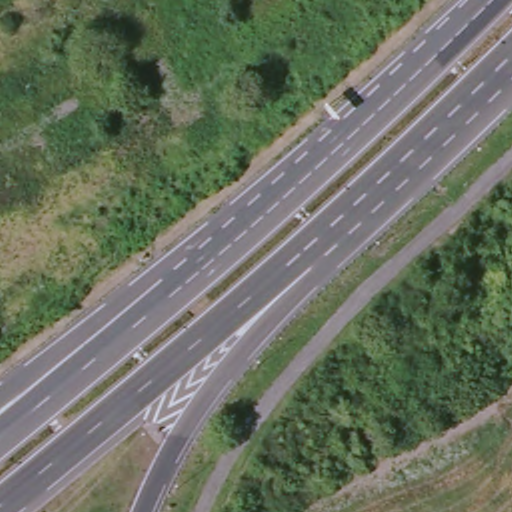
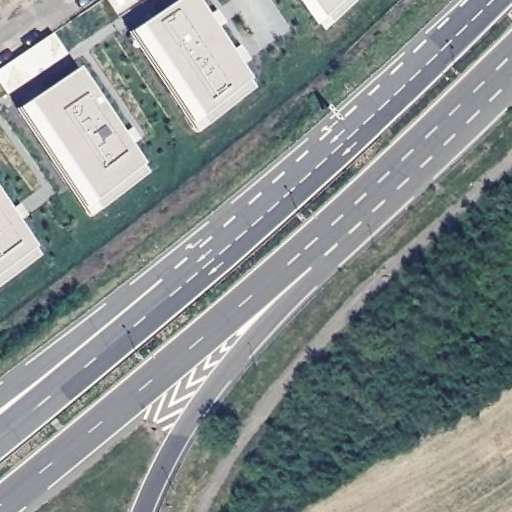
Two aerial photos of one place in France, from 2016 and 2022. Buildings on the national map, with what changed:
new [(189,0),(258,104),(208,138),(135,30),(180,0),(189,0)]
new [(141,0),(148,0),(143,3),(141,0)]
new [(354,0),(336,17),(324,0),(354,0)]
new [(208,138),(198,144),(125,36),(135,30),(208,138)]
new [(48,36),(61,56),(4,93),(0,87),(0,69),(48,36)]
new [(240,52),(248,63),(236,71),(228,60),(240,52)]
new [(74,67),(147,174),(97,208),(24,102),(74,67)]
new [(97,208),(88,215),(14,108),(24,102),(97,208)]
new [(128,123),(136,134),(124,142),(117,130),(128,123)]
new [(37,254),(0,280),(0,200),(37,254)]
new [(7,210),(18,202),(26,214),(14,221),(7,210)]

